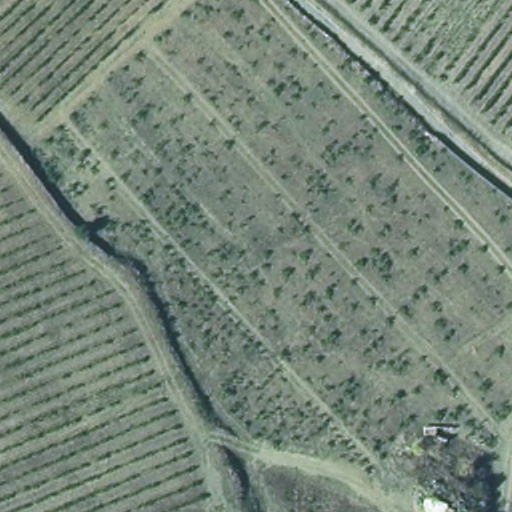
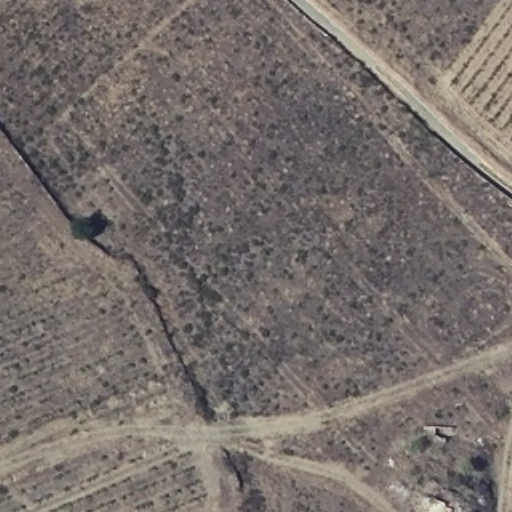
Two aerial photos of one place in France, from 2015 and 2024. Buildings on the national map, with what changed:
unchanged [(448,502),(447,512),(434,512),(423,510),(426,495),(448,502)]

